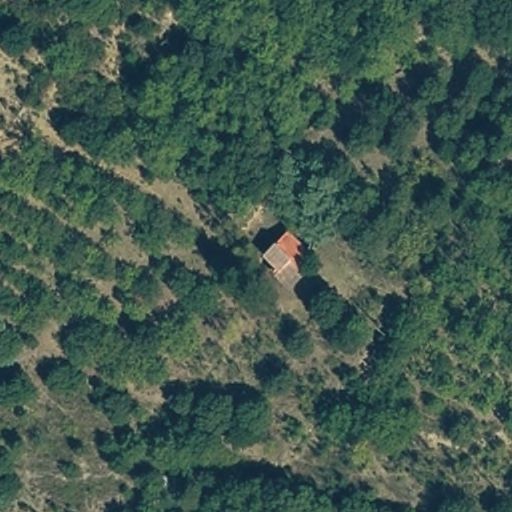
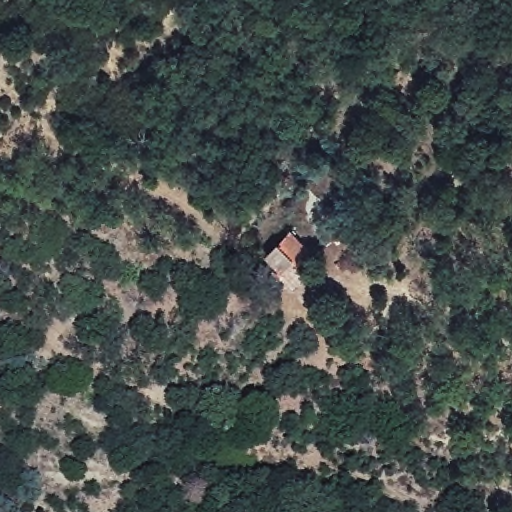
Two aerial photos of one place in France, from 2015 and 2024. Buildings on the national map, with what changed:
unchanged [(288,236),(313,260),(300,270),(311,278),(292,295),(262,261),(288,236)]

